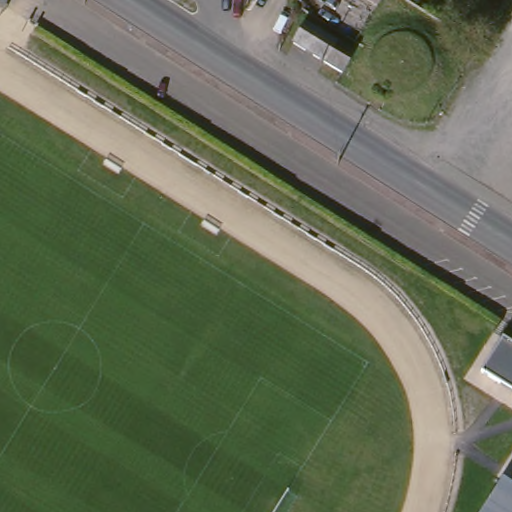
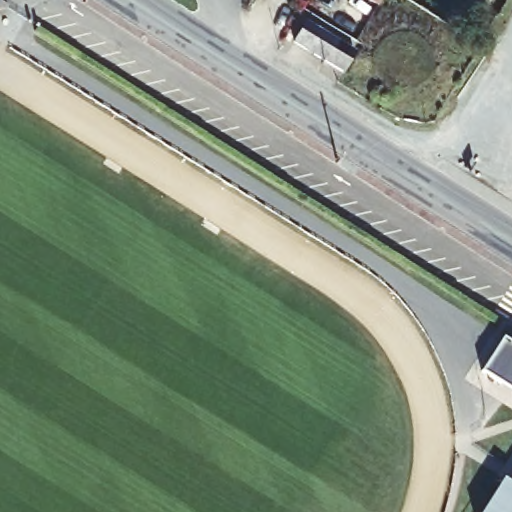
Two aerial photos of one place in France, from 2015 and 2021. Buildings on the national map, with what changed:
unchanged [(373,11),(354,0),(379,0),(373,11)]
unchanged [(303,24),(352,55),(345,65),(341,72),(292,43),(303,24)]
unchanged [(512,392),(481,372),(503,337),(512,343),(512,392)]
unchanged [(512,483),(512,512),(482,512),(502,477),(512,483)]

